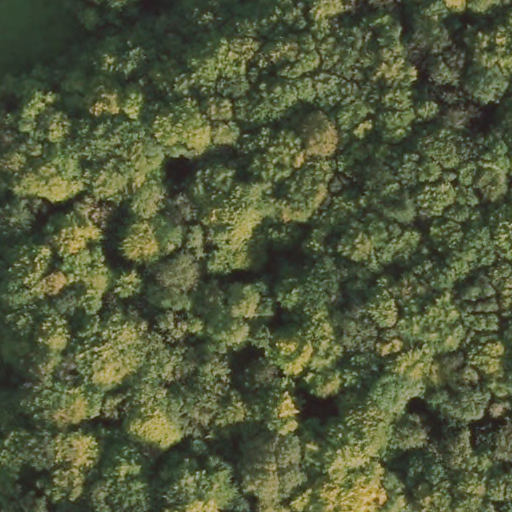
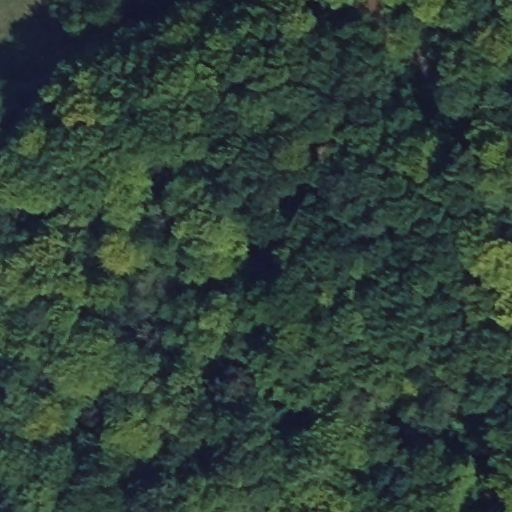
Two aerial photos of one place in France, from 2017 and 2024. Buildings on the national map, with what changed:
unchanged [(293,378),(299,395),(278,402),(272,385),(293,378)]

